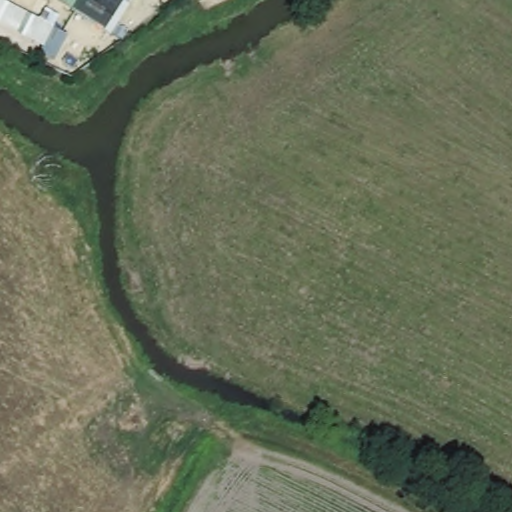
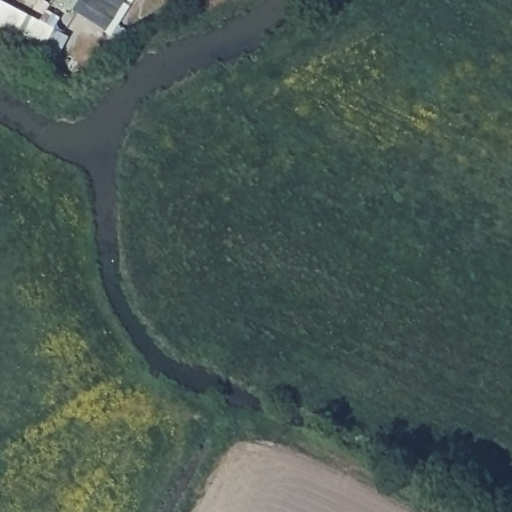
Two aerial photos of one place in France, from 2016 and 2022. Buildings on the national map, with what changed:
unchanged [(106,34),(51,0),(128,0),(106,34)]
unchanged [(52,57),(0,25),(0,4),(61,41),(52,57)]

